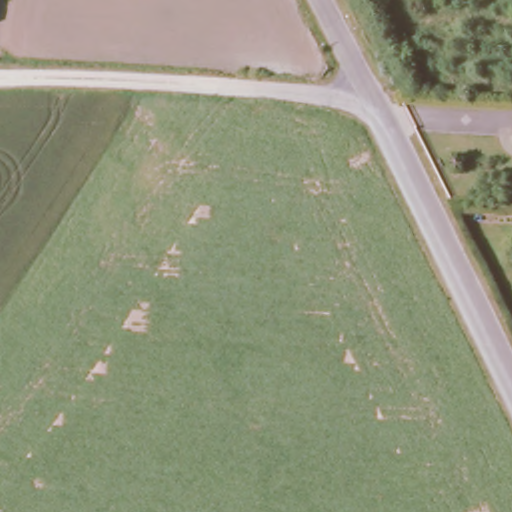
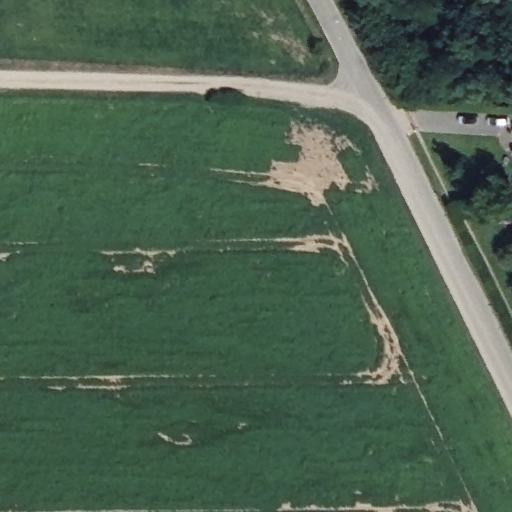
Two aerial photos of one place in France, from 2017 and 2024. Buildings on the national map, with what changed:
[]

